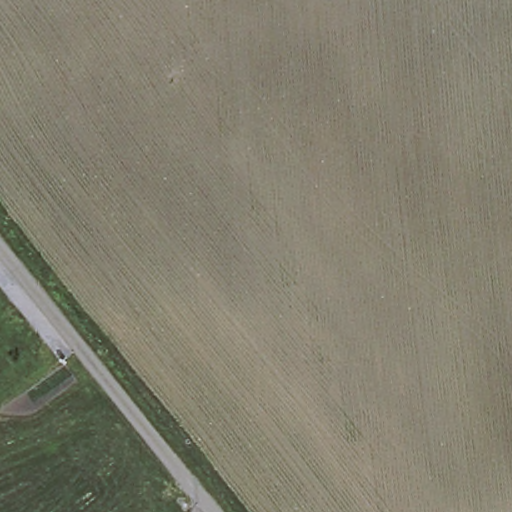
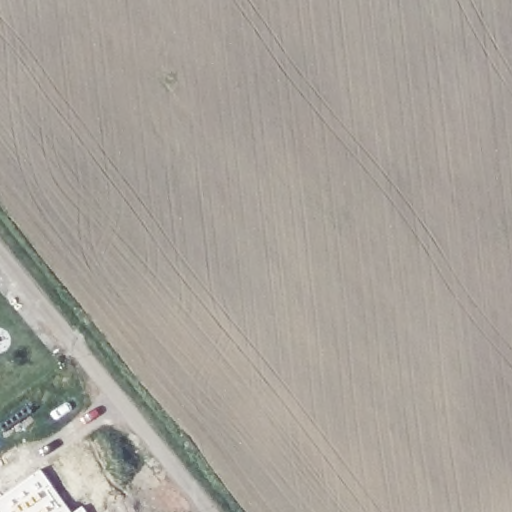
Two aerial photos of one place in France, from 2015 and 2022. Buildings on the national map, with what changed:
new [(0,512),(0,500),(40,472),(70,512),(0,512)]
new [(87,512),(74,512),(82,505),(87,512)]

